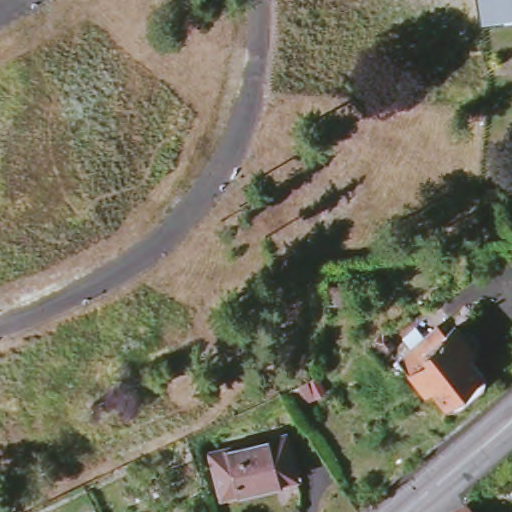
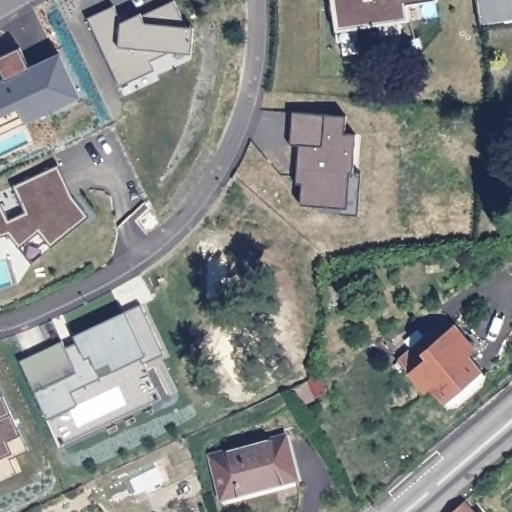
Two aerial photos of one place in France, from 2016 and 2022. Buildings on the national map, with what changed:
new [(406,3),(408,21),(398,22),(400,33),(381,35),(379,25),(356,28),(357,39),(336,41),(334,31),(330,0),(428,0),(406,3)]
unchanged [(477,0),(512,0),(512,21),(481,26),(477,0)]
new [(141,15),(173,1),(186,28),(193,28),(191,53),(170,52),(149,61),(153,70),(119,87),(88,19),(112,7),(121,23),(141,15)]
new [(78,106),(24,128),(0,77),(0,55),(25,44),(32,61),(55,52),(78,106)]
new [(12,135),(0,141),(0,111),(12,135)]
new [(2,206),(10,222),(23,218),(14,188),(55,168),(60,166),(75,199),(88,214),(91,218),(31,266),(19,251),(5,233),(0,235),(0,207),(2,206)]
unchanged [(326,287),(345,288),(345,306),(325,305),(326,287)]
new [(62,343),(65,350),(77,344),(73,338),(140,307),(164,357),(144,366),(160,402),(59,448),(19,363),(62,343)]
unchanged [(431,384),(425,389),(397,356),(416,339),(423,347),(429,342),(425,338),(428,335),(432,340),(454,321),(475,345),(470,351),(487,371),(483,380),(460,400),(447,403),(431,384)]
unchanged [(316,373),(323,391),(312,395),(305,380),(316,373)]
new [(1,395),(19,434),(27,451),(10,459),(17,474),(0,482),(0,394),(1,395)]
unchanged [(227,497),(214,455),(262,440),(287,432),(299,474),(282,479),(227,497)]

